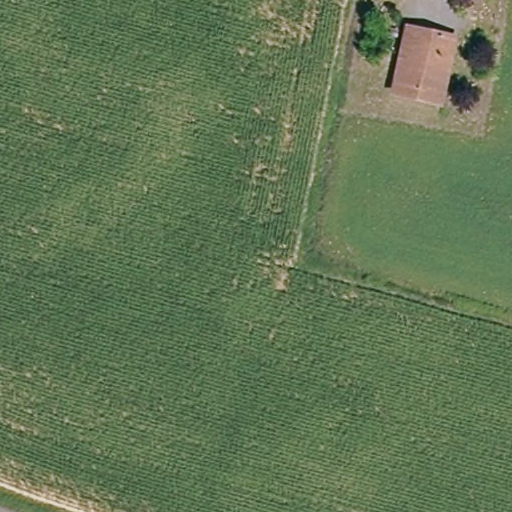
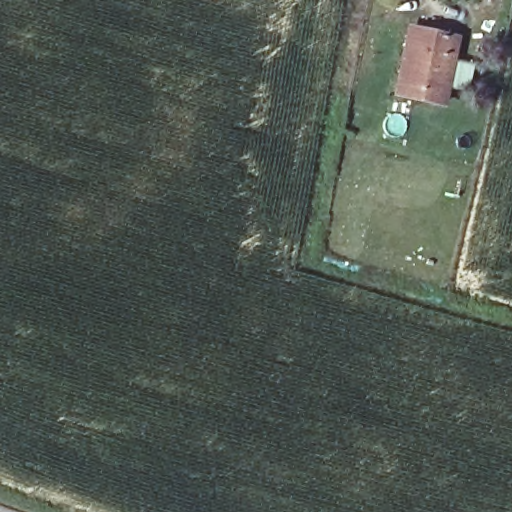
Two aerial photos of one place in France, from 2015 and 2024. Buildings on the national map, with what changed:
unchanged [(411,26),(457,36),(443,100),(397,90),(411,26)]

